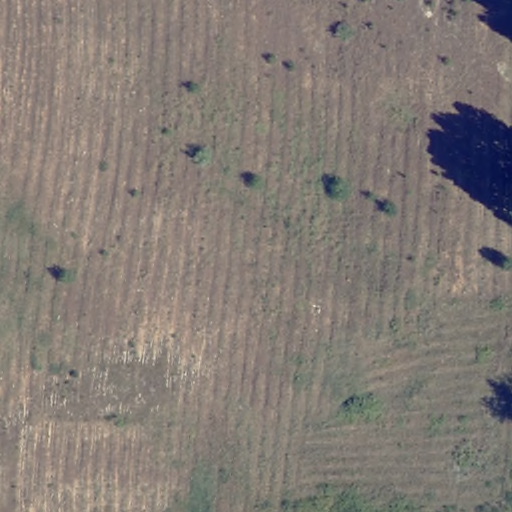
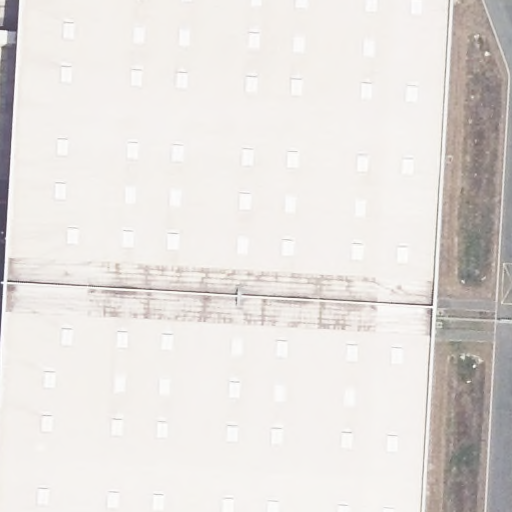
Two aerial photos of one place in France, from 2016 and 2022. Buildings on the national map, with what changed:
new [(0,388),(4,304),(0,304),(0,203),(9,202),(22,0),(450,0),(422,512),(0,512),(0,388)]

